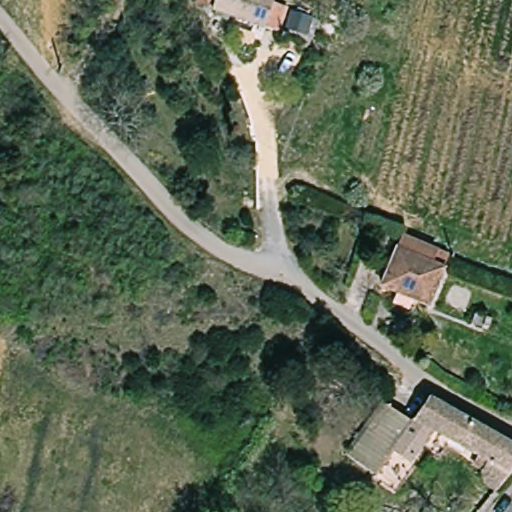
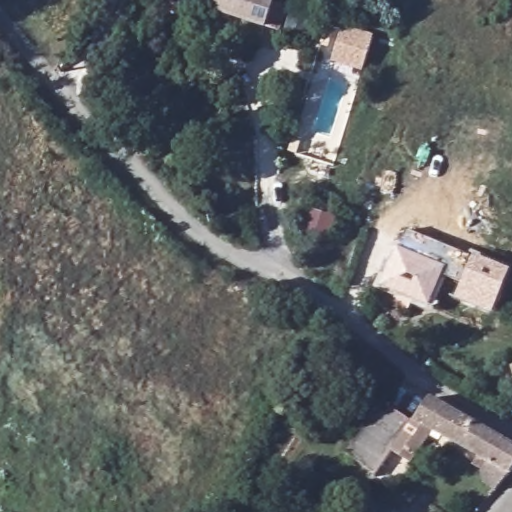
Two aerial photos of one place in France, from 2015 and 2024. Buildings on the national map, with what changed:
unchanged [(265,2),(264,5),(275,8),(268,32),(198,7),(200,2),(194,0),(262,0),(262,1),(265,2)]
new [(332,62),(343,26),(375,36),(363,72),(332,62)]
new [(409,231),(469,256),(472,250),(483,255),(482,258),(511,270),(492,315),(455,298),(462,282),(444,276),(453,257),(406,236),(409,231)]
unchanged [(429,304),(383,285),(406,236),(453,257),(429,304)]
unchanged [(485,476),(492,465),(462,450),(458,455),(443,445),(435,457),(417,447),(407,461),(413,466),(395,492),(373,477),(375,473),(370,470),(405,417),(410,421),(424,401),(424,400),(426,398),(442,407),(501,441),(512,447),(512,471),(502,484),(495,493),(484,487),(485,476)]
unchanged [(384,402),(405,417),(370,470),(348,455),(384,402)]
unchanged [(347,512),(340,512),(342,508),(347,512)]

